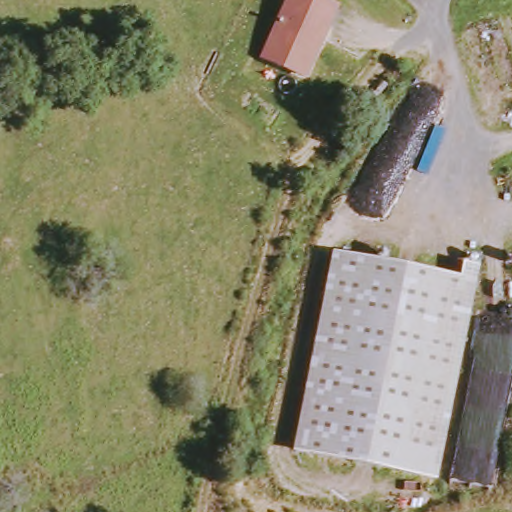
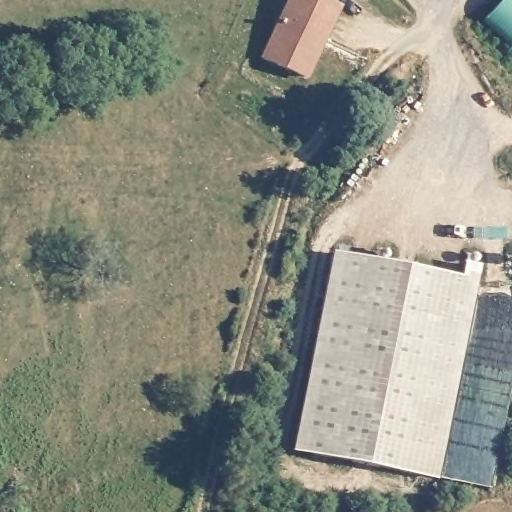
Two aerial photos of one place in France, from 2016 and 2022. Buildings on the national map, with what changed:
unchanged [(306,79),(258,56),(287,0),(318,0),(337,9),(306,79)]
new [(502,0),(512,0),(512,46),(484,22),(502,0)]
unchanged [(436,480),(291,450),(333,255),(476,288),(436,480)]

